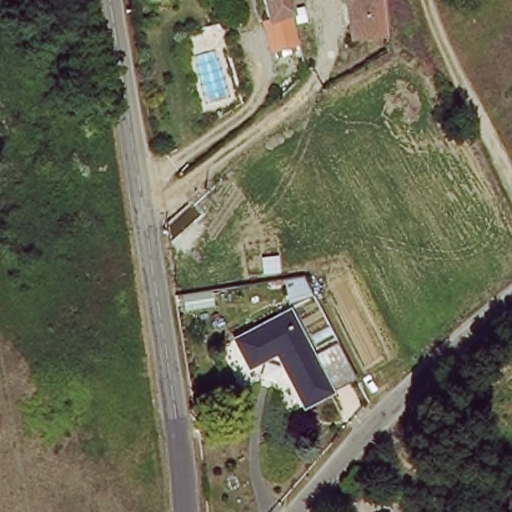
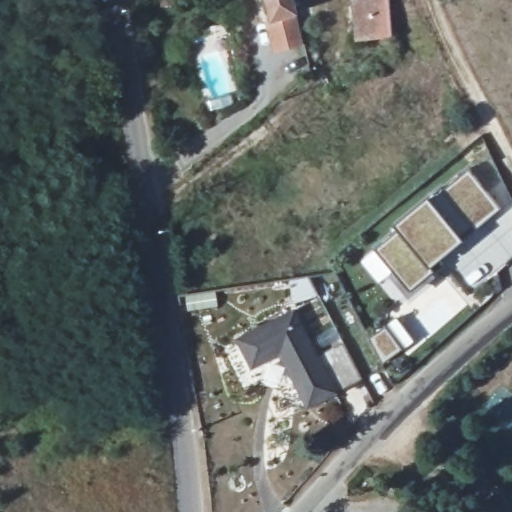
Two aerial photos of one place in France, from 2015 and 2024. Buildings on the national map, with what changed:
unchanged [(294,23),(271,29),(263,0),(287,0),(294,23)]
unchanged [(398,29),(398,30),(355,38),(352,0),(395,0),(398,29)]
new [(393,226),(385,220),(422,191),(426,197),(469,165),(497,204),(426,260),(432,267),(402,289),(368,245),(393,226)]
unchanged [(279,286),(306,282),(308,301),(283,306),(279,286)]
unchanged [(286,356),(256,370),(243,341),(296,316),(320,363),(349,351),(364,383),(311,409),(286,356)]

